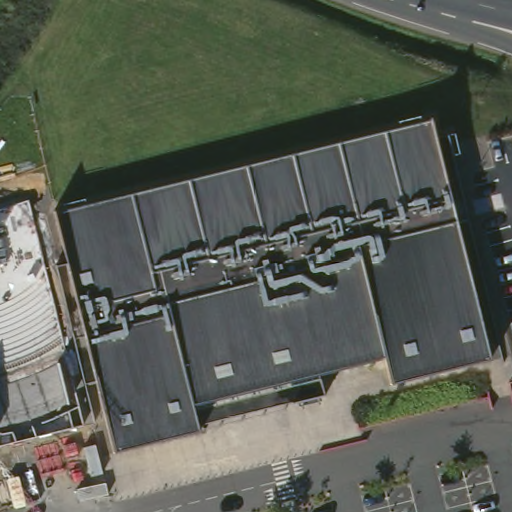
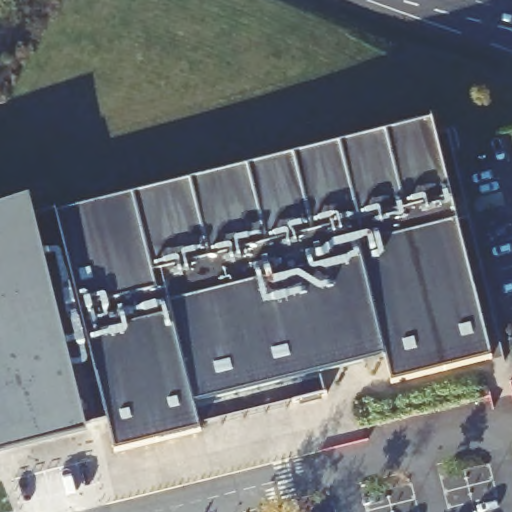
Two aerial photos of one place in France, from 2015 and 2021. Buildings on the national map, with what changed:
unchanged [(143,190),(416,121),(429,171),(441,169),(444,182),(471,287),(460,290),(471,334),(478,361),(378,387),(377,383),(371,361),(306,377),(278,385),(181,410),(187,435),(101,457),(88,408),(83,386),(72,389),(60,344),(41,270),(53,267),(40,217),(143,190)]
new [(0,453),(0,209),(25,201),(41,270),(60,344),(72,389),(83,431),(0,453)]

